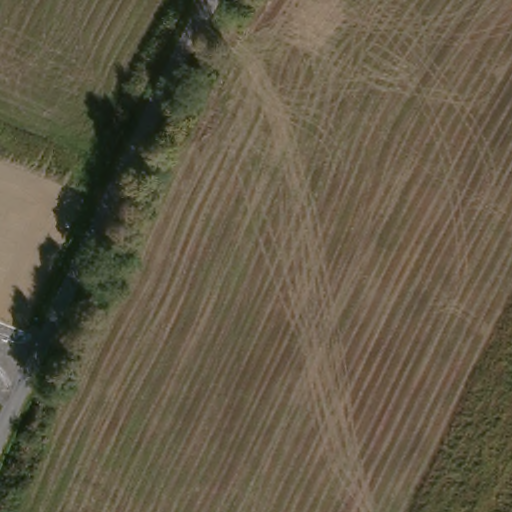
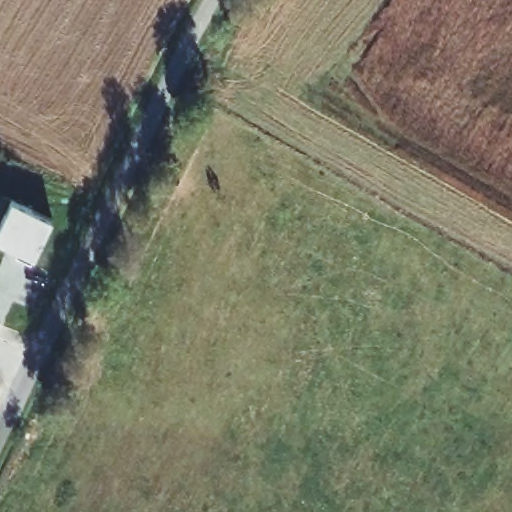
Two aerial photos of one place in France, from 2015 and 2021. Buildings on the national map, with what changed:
new [(11,200),(51,219),(30,264),(14,257),(17,250),(0,241),(0,222),(11,200)]

